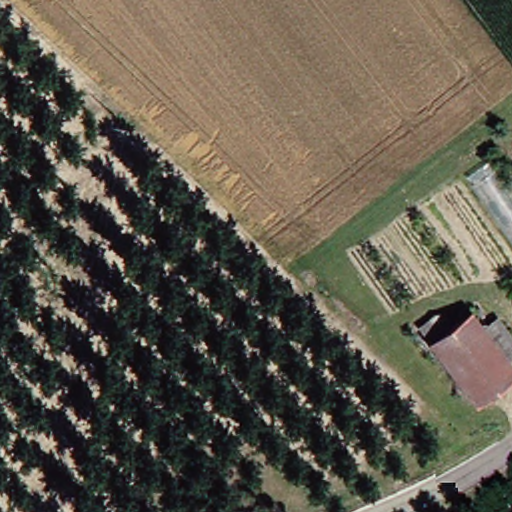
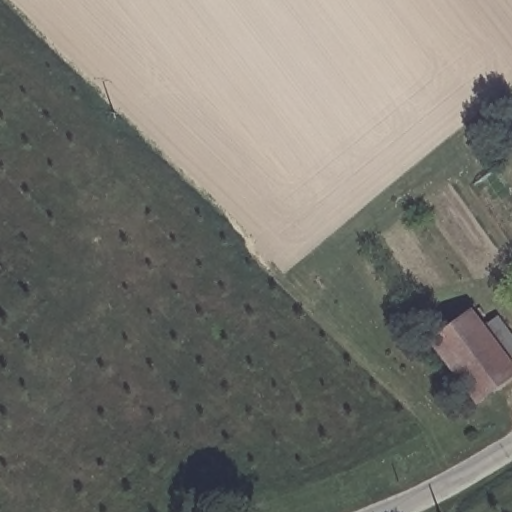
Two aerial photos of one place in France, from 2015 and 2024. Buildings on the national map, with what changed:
unchanged [(473,309),(512,362),(512,369),(474,397),(432,340),(473,309)]

